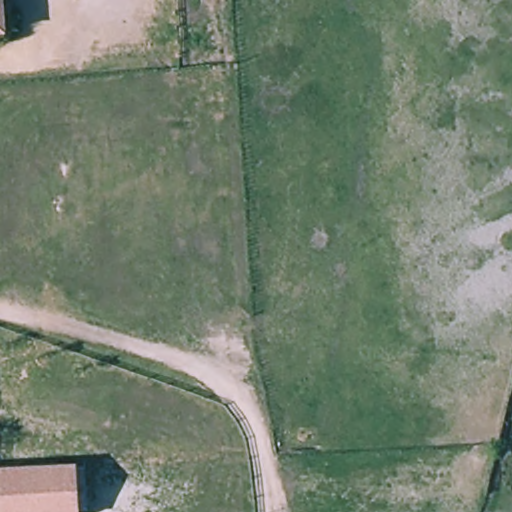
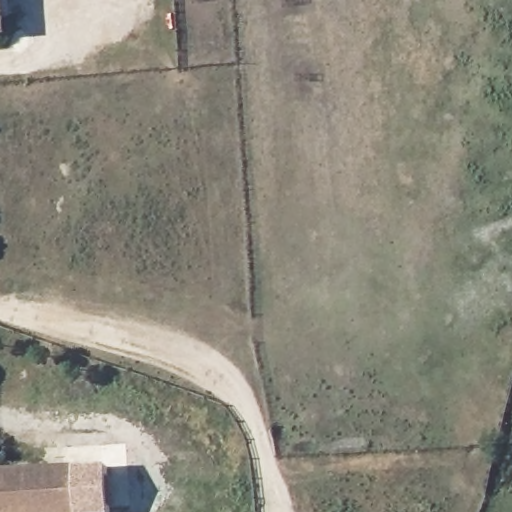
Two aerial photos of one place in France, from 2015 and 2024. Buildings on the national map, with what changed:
unchanged [(9,40),(0,41),(0,0),(4,0),(9,40)]
unchanged [(165,17),(163,0),(206,0),(208,12),(165,17)]
unchanged [(79,467),(83,512),(0,512),(0,475),(79,467)]

